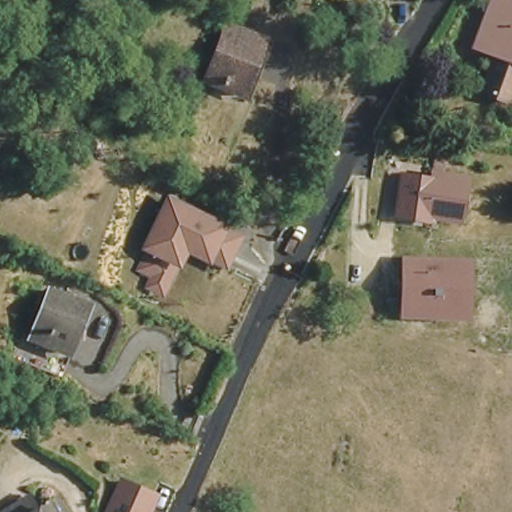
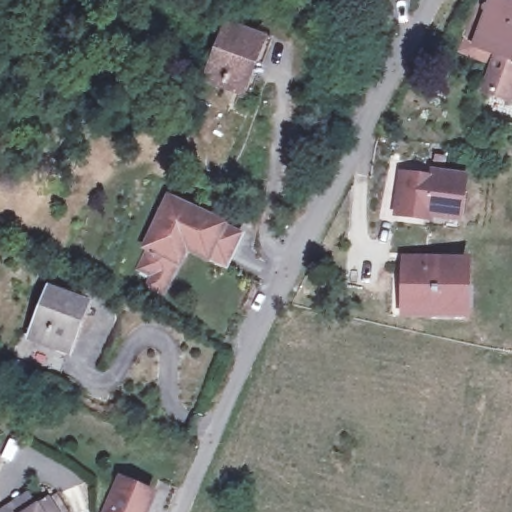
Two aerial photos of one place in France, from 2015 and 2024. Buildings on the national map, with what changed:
unchanged [(476,47),(492,0),(512,0),(512,98),(489,90),(500,56),(476,47)]
unchanged [(270,41),(266,48),(246,99),(236,95),(202,81),(200,81),(200,80),(222,25),(225,26),(259,39),(260,37),(270,41)]
unchanged [(328,145),(306,134),(318,111),(340,123),(328,145)]
unchanged [(458,222),(430,219),(430,222),(393,216),(399,174),(428,178),(431,156),(437,156),(435,170),(455,173),(463,174),(458,222)]
unchanged [(145,281),(147,276),(135,271),(136,266),(135,265),(156,217),(151,214),(164,188),(188,200),(181,213),(188,216),(191,211),(215,223),(208,238),(203,249),(180,238),(162,278),(158,287),(145,281)]
unchanged [(218,218),(241,230),(223,266),(200,254),(203,249),(208,238),(215,223),(218,218)]
unchanged [(470,320),(398,319),(400,256),(472,258),(470,320)]
unchanged [(46,293),(84,309),(75,332),(66,356),(28,341),(38,315),(46,293)]
unchanged [(146,512),(105,512),(120,477),(155,491),(146,512)]
unchanged [(47,509),(60,502),(65,512),(13,512),(41,497),(47,509)]

